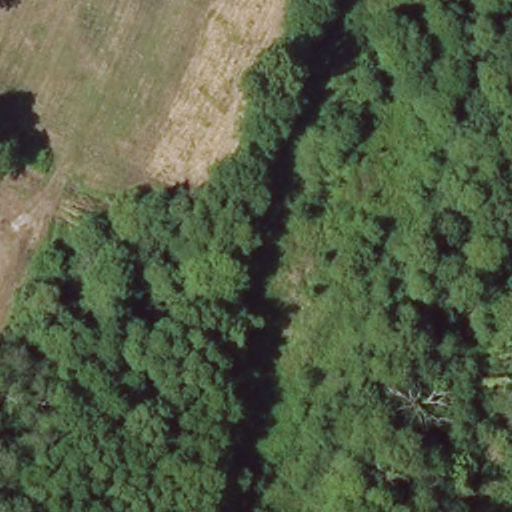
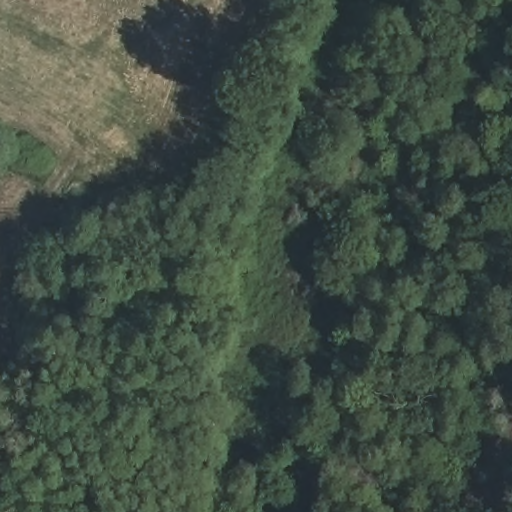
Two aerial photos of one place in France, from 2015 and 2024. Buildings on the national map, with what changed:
[]

